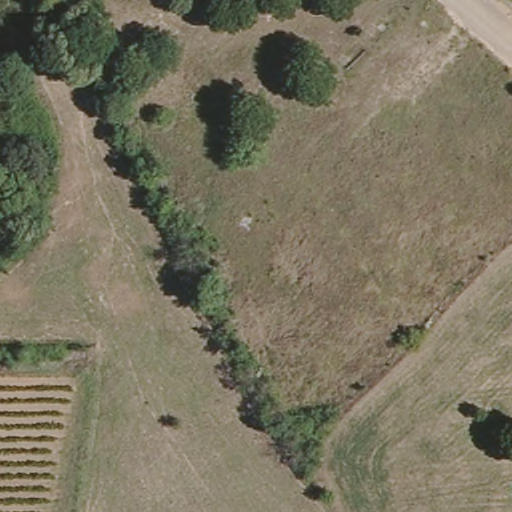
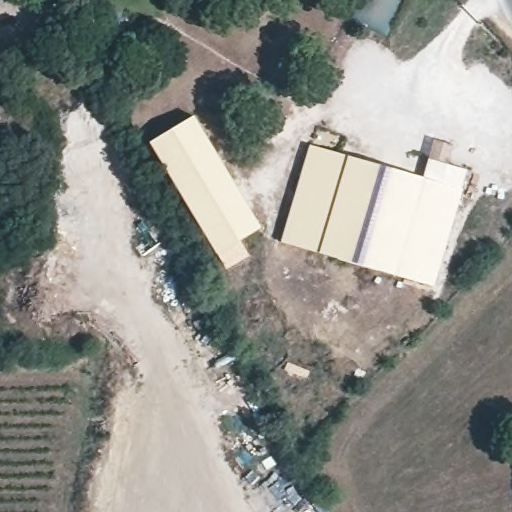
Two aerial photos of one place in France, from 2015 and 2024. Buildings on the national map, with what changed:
new [(217,253),(151,143),(194,116),(262,228),(239,242),(249,257),(227,269),(217,253)]
new [(282,243),(310,146),(463,190),(434,288),(282,243)]
demolished [(192,247),(210,238),(225,265),(236,260),(245,285),(218,297),(192,247)]

